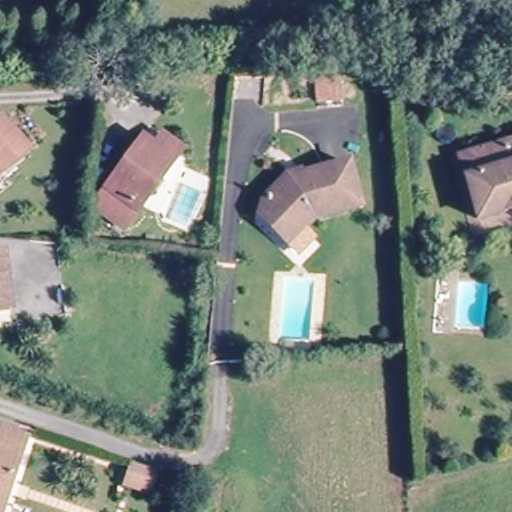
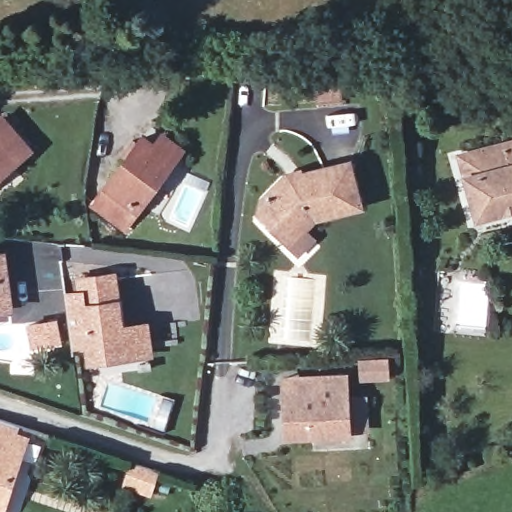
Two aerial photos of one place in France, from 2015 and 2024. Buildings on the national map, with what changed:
unchanged [(339,81),(340,101),(315,102),(313,82),(339,81)]
unchanged [(25,153),(0,172),(0,122),(25,153)]
unchanged [(512,207),(473,218),(456,157),(512,142),(512,207)]
unchanged [(87,209),(135,147),(147,156),(157,143),(179,159),(167,174),(119,235),(87,209)]
unchanged [(291,254),(282,245),(254,215),(258,196),(266,188),(273,193),(293,174),(345,159),(358,202),(315,214),(296,232),(305,241),(291,254)]
unchanged [(3,261),(8,312),(0,312),(0,261),(3,261)]
new [(155,358),(86,366),(84,346),(70,348),(62,292),(76,289),(73,276),(116,270),(120,299),(123,324),(150,321),(155,358)]
new [(280,376),(349,372),(350,395),(368,396),(371,433),(352,433),(352,438),(284,440),(280,376)]
unchanged [(11,428),(8,436),(20,439),(0,497),(0,424),(11,428)]
unchanged [(149,473),(141,493),(120,486),(127,465),(149,473)]

